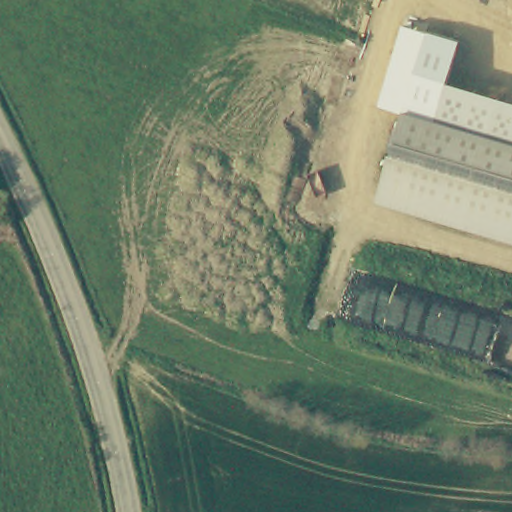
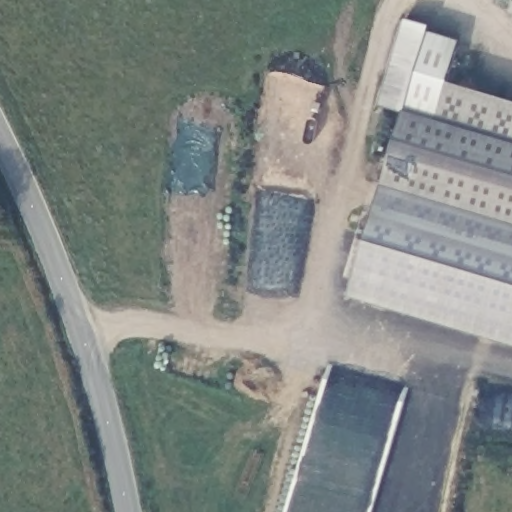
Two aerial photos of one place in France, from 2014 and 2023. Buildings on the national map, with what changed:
unchanged [(404,115),(379,107),(402,25),(460,42),(448,83),(512,102),(512,243),(377,204),(404,115)]
new [(377,204),(512,243),(512,346),(347,297),(377,204)]

